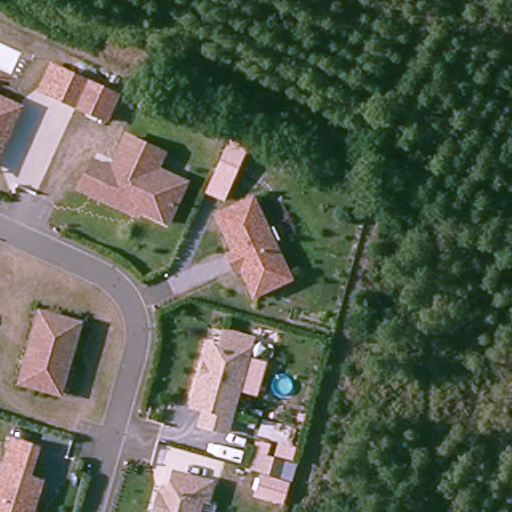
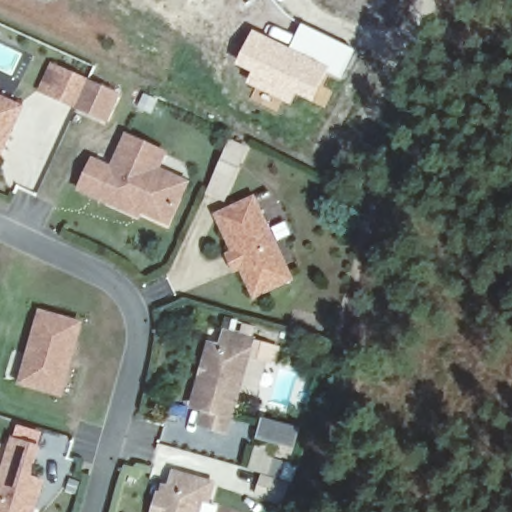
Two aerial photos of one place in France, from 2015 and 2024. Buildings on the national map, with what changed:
new [(314,103),(295,94),(290,105),(247,84),(252,73),(237,66),(254,31),(290,49),(302,24),(355,50),(341,80),(328,74),(314,103)]
unchanged [(36,90),(50,59),(89,79),(75,107),(36,90)]
new [(121,93),(109,123),(75,107),(89,79),(121,93)]
unchanged [(22,109),(15,126),(0,157),(0,99),(22,109)]
unchanged [(131,210),(111,201),(100,196),(81,187),(94,160),(113,169),(125,143),(129,136),(164,152),(156,169),(186,182),(180,194),(168,221),(141,209),(140,213),(131,210)]
unchanged [(229,255),(235,252),(218,215),(254,199),(290,279),(255,295),(241,267),(235,270),(229,255)]
unchanged [(60,397),(21,386),(42,316),(80,328),(60,397)]
unchanged [(204,422),(209,406),(196,403),(215,342),(225,345),(230,330),(256,338),(234,414),(229,429),(204,422)]
new [(263,443),(269,424),(305,435),(298,454),(300,455),(297,465),(281,460),(285,450),(263,443)]
unchanged [(0,512),(0,479),(12,442),(37,450),(28,480),(42,484),(36,501),(33,511),(33,512),(0,512)]
unchanged [(257,475),(247,472),(252,457),(262,460),(257,475)]
unchanged [(288,485),(275,481),(280,466),(292,470),(288,485)]
unchanged [(155,512),(161,489),(167,491),(171,475),(209,486),(204,503),(198,501),(195,512),(155,512)]
unchanged [(265,482),(293,489),(288,507),(260,500),(265,482)]

